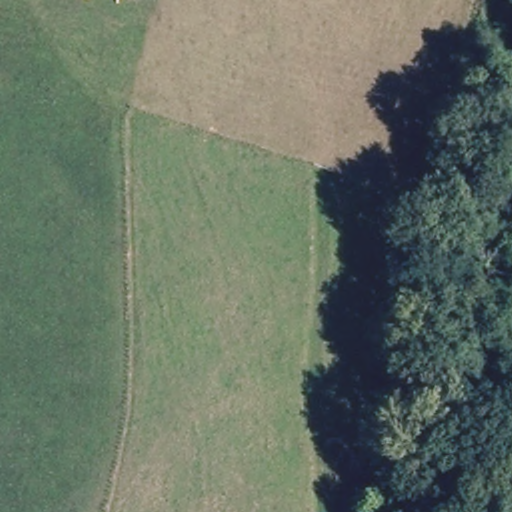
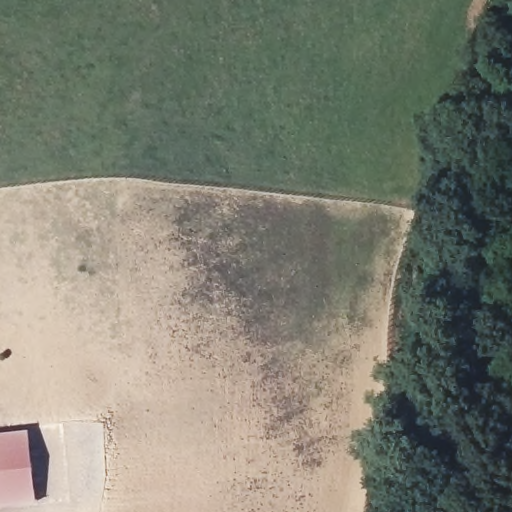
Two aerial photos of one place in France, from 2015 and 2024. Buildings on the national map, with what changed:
new [(28,430),(35,503),(0,507),(0,432),(28,430)]

